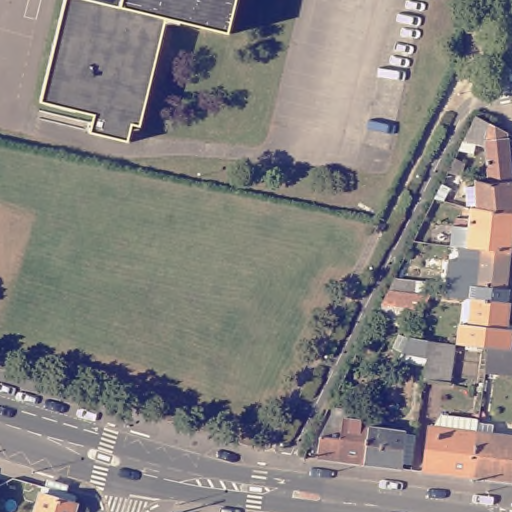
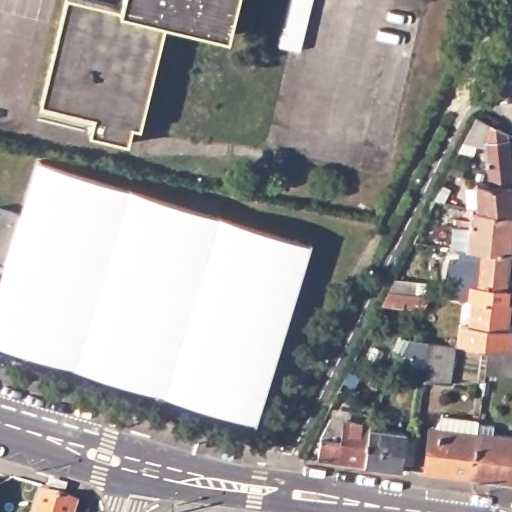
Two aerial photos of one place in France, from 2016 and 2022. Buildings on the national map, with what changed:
unchanged [(230,32),(179,20),(153,129),(136,125),(132,142),(93,132),(97,115),(43,102),(68,0),(96,0),(123,6),(125,0),(238,0),(230,32)]
unchanged [(463,145),(477,117),(510,131),(512,156),(512,181),(494,182),(491,144),(473,144),(463,176),(449,173),(463,145)]
new [(17,214),(35,158),(314,244),(258,427),(0,347),(0,208),(17,214)]
unchanged [(481,180),(494,182),(512,181),(512,212),(481,208),(481,180)]
unchanged [(347,209),(349,200),(366,204),(364,213),(347,209)]
unchanged [(454,245),(456,225),(472,227),(475,207),(481,208),(512,212),(512,252),(464,246),(454,245)]
unchanged [(411,240),(423,215),(435,221),(425,241),(411,240)]
unchanged [(479,286),(469,284),(471,265),(462,265),(464,246),(512,252),(512,274),(510,303),(478,299),(479,286)]
unchanged [(428,293),(422,307),(385,302),(391,290),(396,279),(417,281),(415,292),(428,293)]
unchanged [(459,343),(462,322),(471,324),(474,299),(478,299),(510,303),(512,303),(512,325),(511,329),(512,329),(512,377),(485,374),(488,347),(459,343)]
unchanged [(426,382),(429,368),(401,362),(412,336),(460,345),(452,385),(426,382)]
unchanged [(422,473),(427,428),(437,429),(438,417),(475,422),(475,425),(468,480),(422,473)]
unchanged [(320,460),(322,441),(332,420),(372,425),(371,428),(367,466),(320,460)]
unchanged [(489,435),(512,439),(512,485),(468,480),(475,425),(490,428),(489,435)]
unchanged [(367,466),(371,428),(409,433),(404,470),(367,466)]
unchanged [(81,499),(80,503),(82,504),(79,512),(42,512),(49,490),(81,499)]

